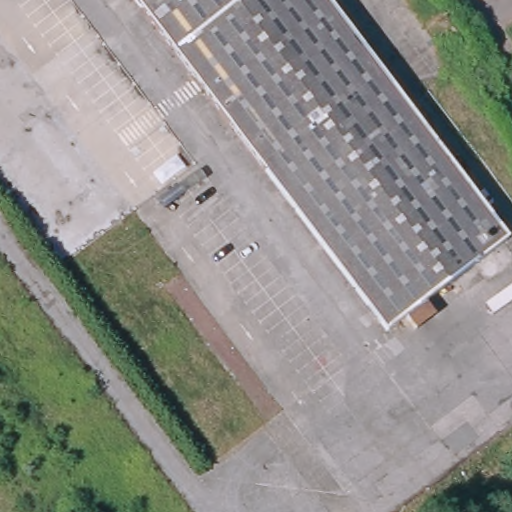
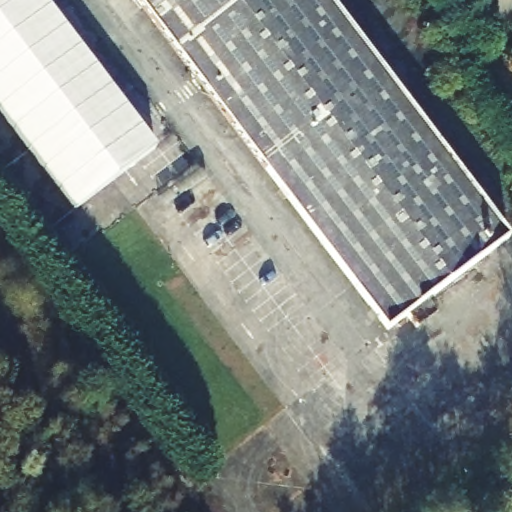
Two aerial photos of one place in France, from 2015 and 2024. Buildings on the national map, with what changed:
new [(163,157),(78,225),(0,121),(0,0),(44,0),(163,157)]
unchanged [(142,0),(329,0),(511,240),(392,330),(142,0)]
unchanged [(210,172),(215,181),(174,210),(168,201),(210,172)]

